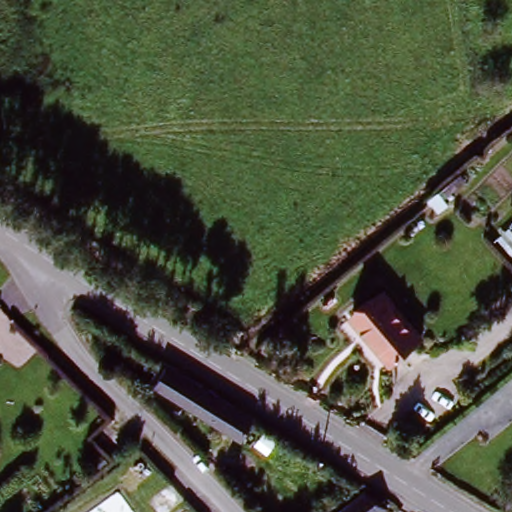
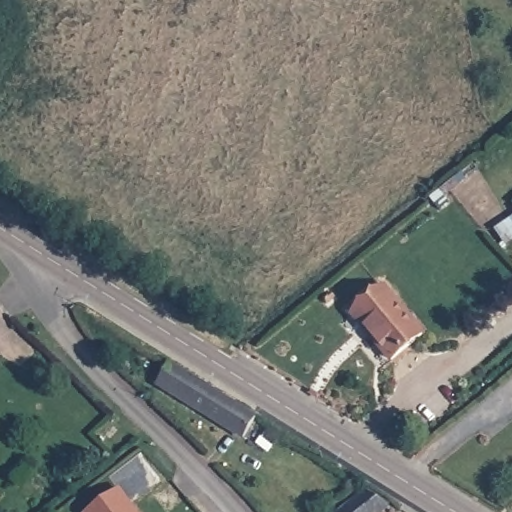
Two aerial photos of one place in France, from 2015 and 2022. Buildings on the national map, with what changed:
unchanged [(426,334),(392,361),(354,314),(388,287),(426,334)]
unchanged [(143,373),(155,353),(256,415),(245,435),(143,373)]
new [(137,512),(88,512),(119,488),(137,512)]
unchanged [(376,512),(338,512),(370,488),(383,506),(376,512)]

